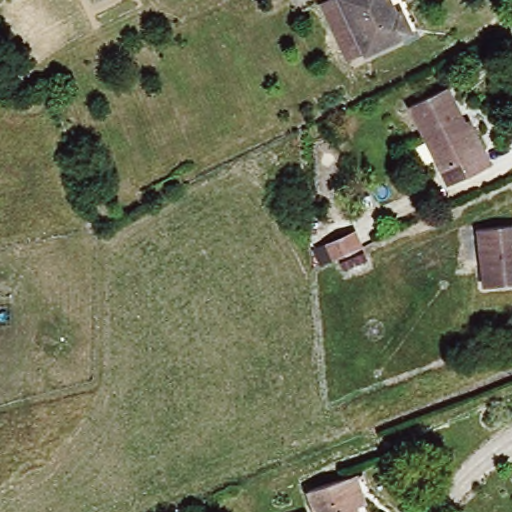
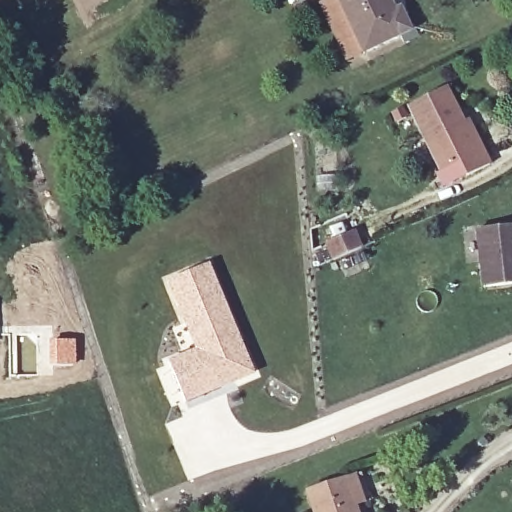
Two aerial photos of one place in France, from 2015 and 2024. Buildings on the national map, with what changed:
unchanged [(337,0),(389,0),(394,14),(401,11),(412,35),(374,53),(359,60),(333,3),(337,0)]
unchanged [(421,105),(454,89),(478,138),(484,135),(499,163),(474,175),(467,162),(452,170),(421,105)]
unchanged [(332,252),(325,236),(352,224),(359,240),(332,252)]
unchanged [(483,232),(512,228),(512,289),(489,293),(483,232)]
new [(209,262),(258,375),(186,405),(166,360),(194,348),(164,282),(209,262)]
unchanged [(348,475),(361,470),(370,498),(357,503),(360,512),(317,512),(309,489),(348,475)]

